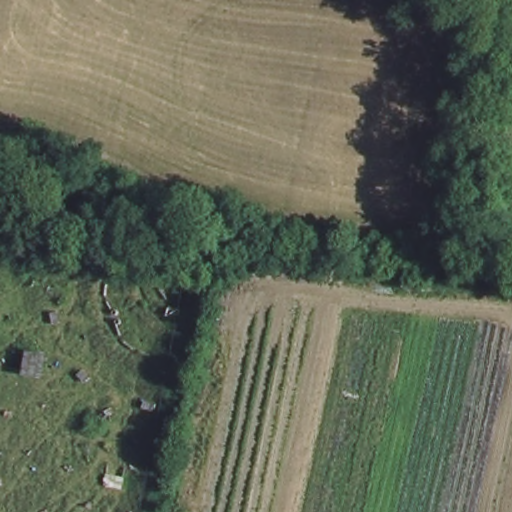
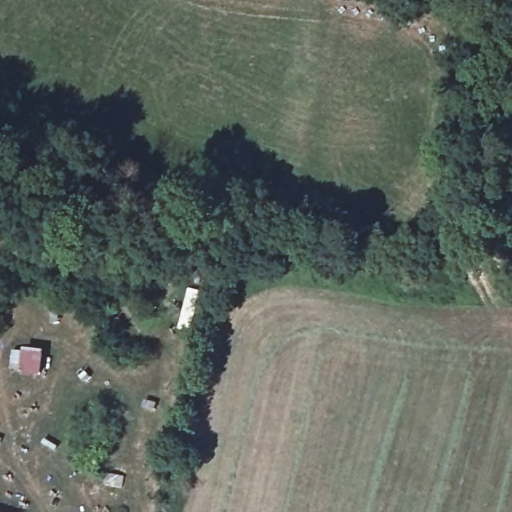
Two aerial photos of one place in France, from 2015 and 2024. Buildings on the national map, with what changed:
[]

